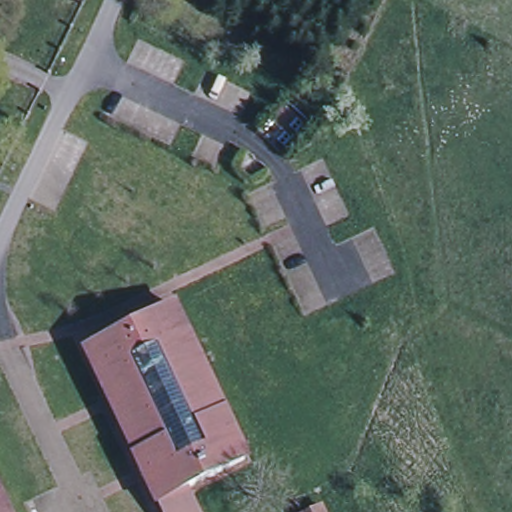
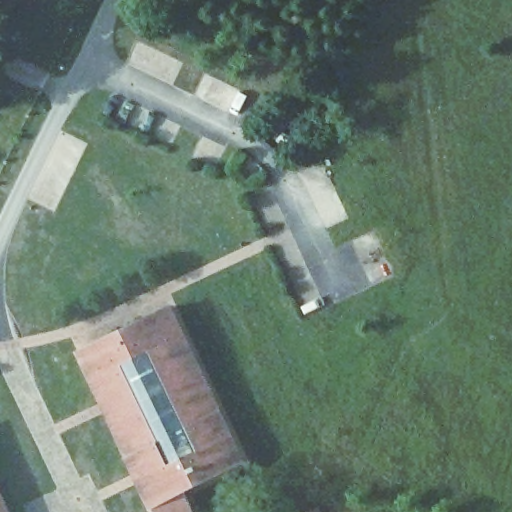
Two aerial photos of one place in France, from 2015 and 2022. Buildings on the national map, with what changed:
unchanged [(171,312),(246,466),(184,496),(191,512),(157,512),(83,354),(171,312)]
unchanged [(0,502),(4,512),(0,512),(0,502)]
unchanged [(325,504),(328,512),(305,512),(325,504)]

